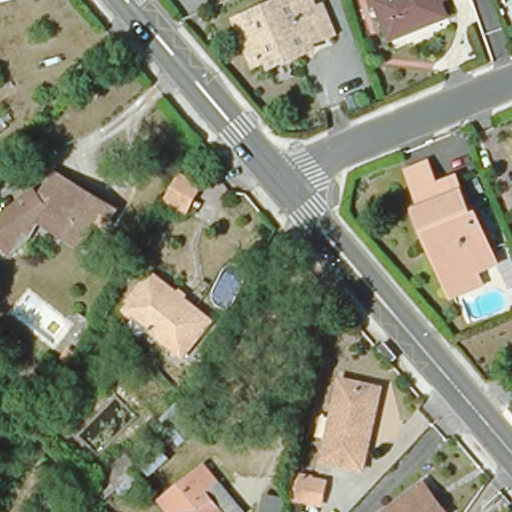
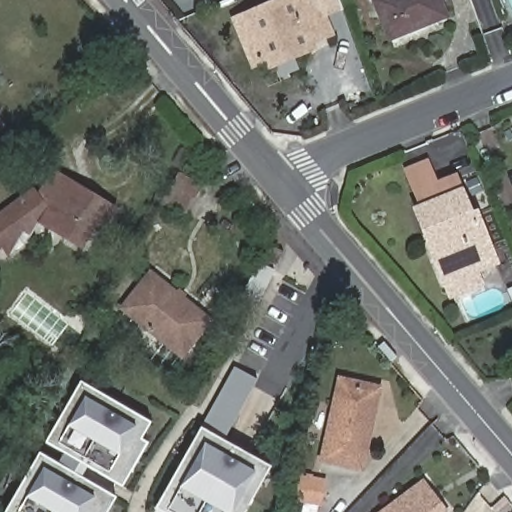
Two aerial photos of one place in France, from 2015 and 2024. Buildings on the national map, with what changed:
unchanged [(322,1),(334,35),(251,69),(228,18),(271,0),(313,0),(315,5),(322,1)]
unchanged [(393,34),(379,0),(443,0),(448,13),(393,34)]
unchanged [(29,185),(33,191),(35,188),(48,167),(110,204),(99,222),(91,217),(76,242),(31,215),(19,236),(3,249),(0,245),(0,207),(29,185)]
unchanged [(177,175),(179,172),(200,185),(184,213),(163,200),(177,175)]
unchanged [(451,295),(434,253),(421,220),(426,219),(411,183),(427,176),(436,198),(454,189),(457,190),(471,228),(476,225),(492,264),(473,272),(478,284),(451,295)]
new [(259,263),(275,270),(258,307),(241,299),(259,263)]
unchanged [(175,351),(116,304),(138,278),(146,268),(158,278),(204,314),(175,351)]
unchanged [(512,281),(512,291),(509,282),(512,281)]
new [(158,508),(203,427),(236,367),(260,379),(226,440),(272,467),(246,512),(164,512),(158,508)]
unchanged [(321,459),(338,384),(339,377),(380,387),(371,427),(361,468),(321,459)]
new [(123,486),(89,466),(84,477),(117,498),(109,512),(7,512),(41,453),(58,463),(65,453),(47,441),(81,381),(152,422),(142,439),(149,443),(123,486)]
demolished [(204,465),(242,512),(241,512),(181,512),(180,511),(178,512),(168,512),(159,502),(199,469),(204,465)]
unchanged [(322,481),(318,502),(292,498),(296,482),(297,476),(322,481)]
unchanged [(422,482),(445,512),(382,512),(422,482)]

